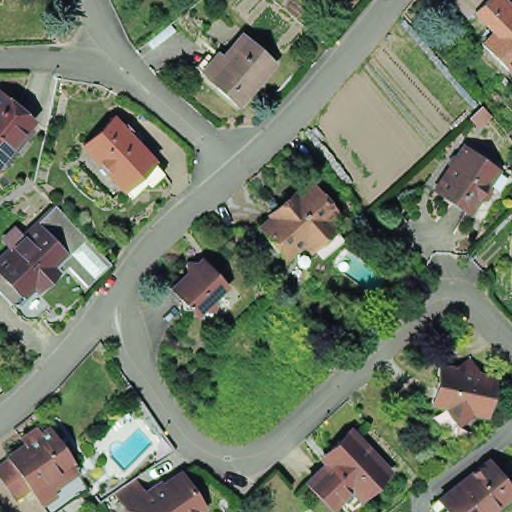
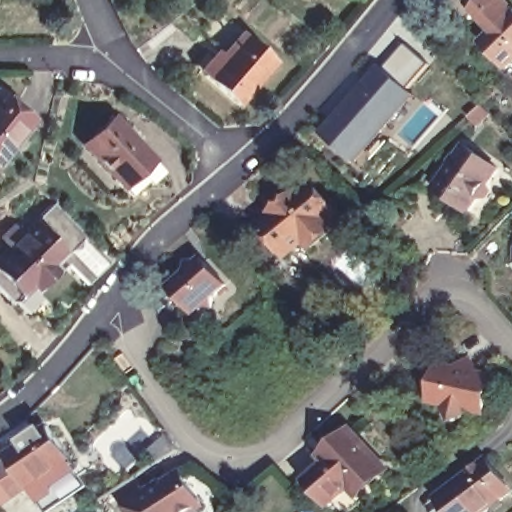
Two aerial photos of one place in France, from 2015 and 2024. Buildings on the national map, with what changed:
unchanged [(512,78),(511,79),(486,53),(497,42),(476,21),(470,26),(450,6),(456,0),(492,0),(495,2),(497,0),(500,0),(512,12),(512,78)]
unchanged [(270,65),(232,107),(200,79),(201,77),(196,73),(205,64),(208,60),(212,55),(217,59),(237,36),(270,65)]
new [(380,65),(385,69),(406,45),(431,65),(410,89),(419,96),(360,166),(323,134),(380,65)]
unchanged [(27,119),(0,153),(0,96),(27,119)]
unchanged [(123,187),(118,181),(85,144),(113,117),(148,155),(152,160),(123,187)]
unchanged [(464,150),(498,174),(489,188),(491,197),(487,205),(478,205),(468,218),(434,195),(464,150)]
unchanged [(309,247),(291,262),(265,232),(277,222),(275,219),(301,196),(304,199),(316,188),(342,218),(335,224),(338,227),(342,231),(315,255),(312,250),(309,247)]
unchanged [(87,283),(68,263),(61,269),(60,268),(56,264),(67,253),(36,220),(55,204),(111,262),(87,283)]
unchanged [(53,305),(42,316),(25,315),(17,308),(17,300),(22,295),(10,283),(1,291),(0,290),(0,280),(4,276),(0,272),(0,255),(36,220),(67,253),(56,264),(60,268),(38,289),(38,290),(53,305)]
unchanged [(227,290),(214,303),(213,315),(202,313),(195,320),(190,312),(183,312),(183,305),(170,291),(186,277),(186,265),(199,266),(199,265),(202,262),(205,265),(205,267),(206,267),(227,290)]
unchanged [(493,377),(485,413),(471,410),(455,421),(444,405),(431,402),(439,365),(458,370),(459,364),(470,355),(476,366),(475,373),(493,377)]
unchanged [(25,484),(23,482),(8,492),(0,479),(0,456),(5,453),(3,451),(20,438),(15,431),(30,421),(35,428),(45,422),(55,437),(67,455),(65,457),(71,468),(82,483),(42,510),(32,494),(25,484)]
unchanged [(345,507),(332,494),(325,501),(300,475),(320,456),(315,451),(324,442),(345,423),(379,460),(386,468),(345,507)]
unchanged [(438,497),(488,458),(512,489),(512,491),(485,512),(437,512),(430,503),(438,497)]
unchanged [(126,507),(115,491),(136,478),(147,494),(180,472),(203,508),(197,512),(129,512),(126,507)]

